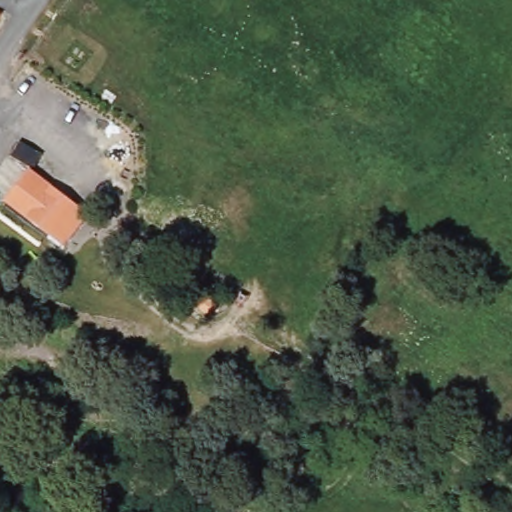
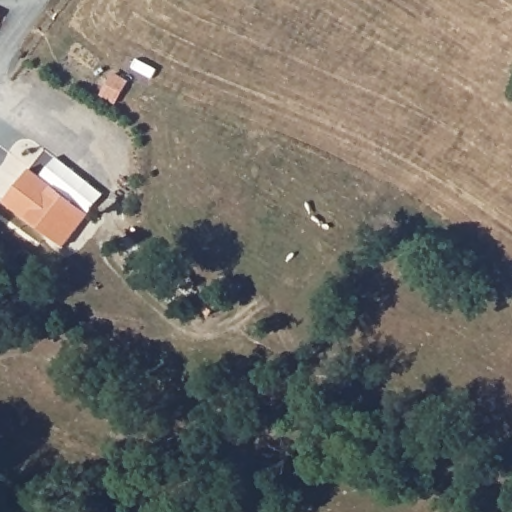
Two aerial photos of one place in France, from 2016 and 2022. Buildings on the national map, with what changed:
unchanged [(65,249),(1,200),(30,168),(90,214),(65,249)]

